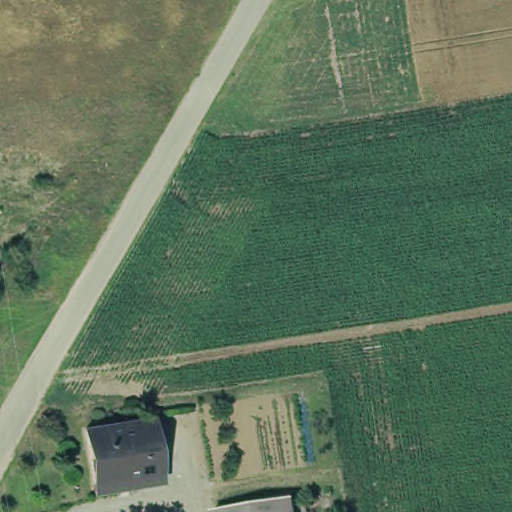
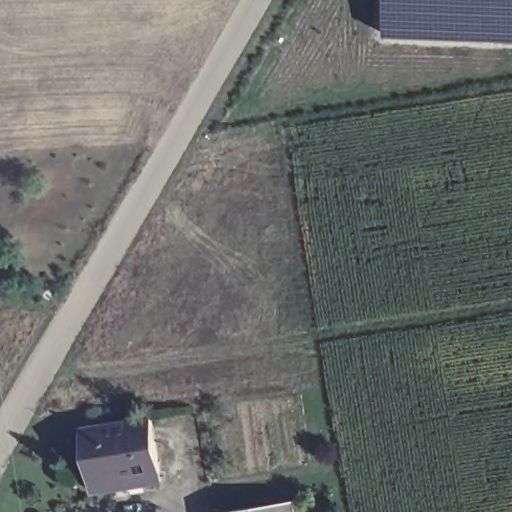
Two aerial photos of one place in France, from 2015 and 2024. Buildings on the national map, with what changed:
new [(377,32),(379,0),(512,0),(512,37),(377,32)]
unchanged [(94,489),(92,478),(84,425),(152,415),(160,466),(162,478),(94,489)]
unchanged [(298,512),(216,512),(216,511),(216,510),(296,499),(298,512)]

